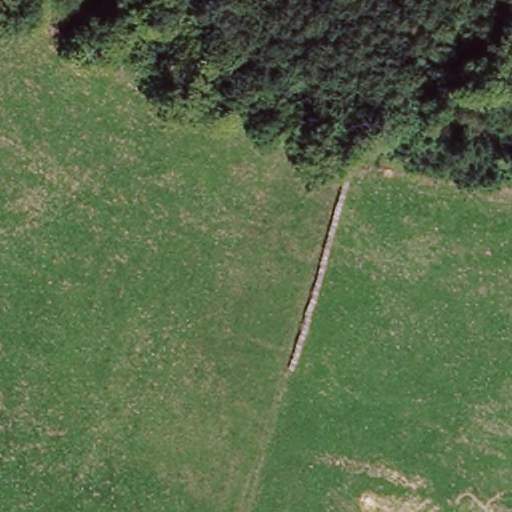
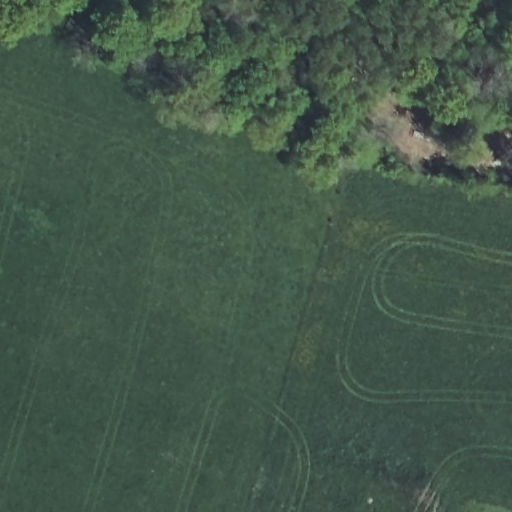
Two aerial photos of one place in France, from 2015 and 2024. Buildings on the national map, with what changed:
[]

